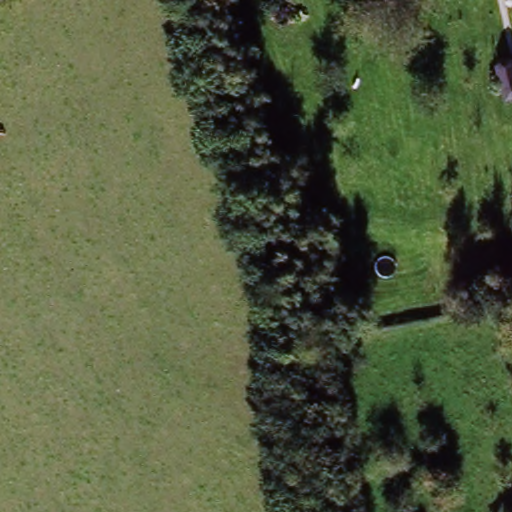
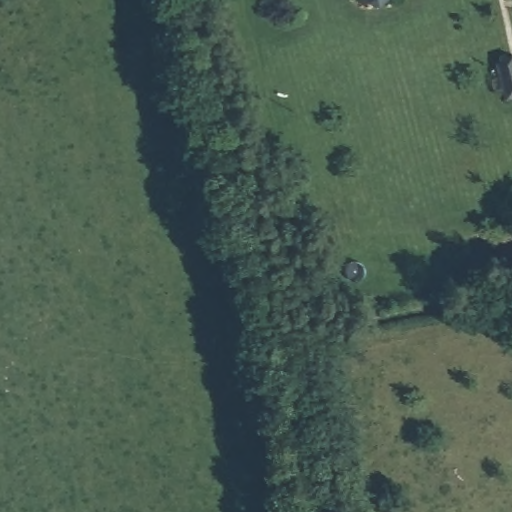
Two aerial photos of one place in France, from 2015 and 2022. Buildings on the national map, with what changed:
unchanged [(512,56),(512,101),(502,58),(512,56)]

